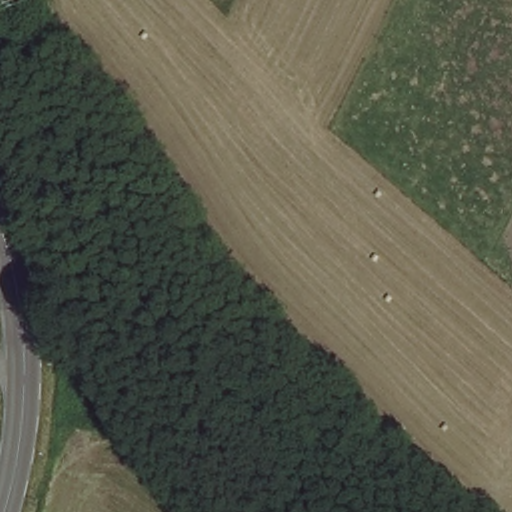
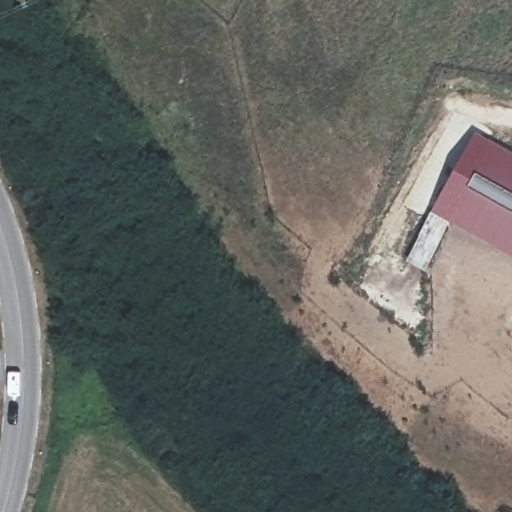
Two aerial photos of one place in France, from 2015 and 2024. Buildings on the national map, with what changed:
new [(474,132),(512,153),(512,258),(430,213),(474,132)]

